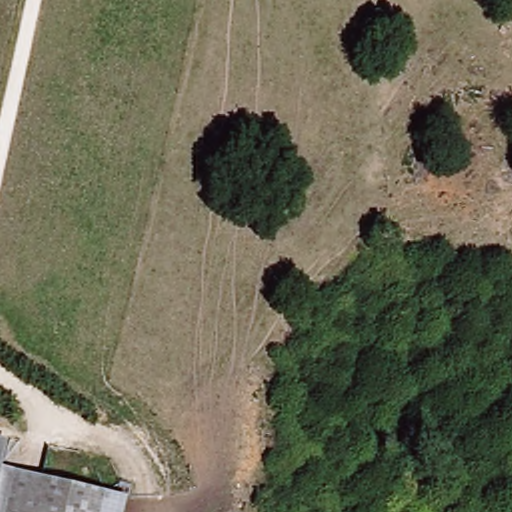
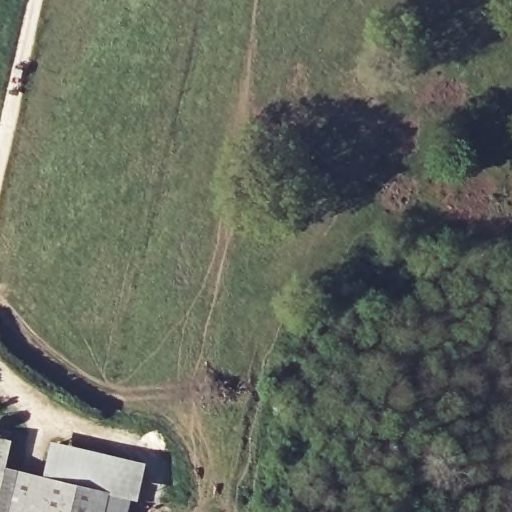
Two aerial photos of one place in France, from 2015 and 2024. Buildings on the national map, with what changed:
unchanged [(5,468),(42,476),(129,498),(126,512),(0,512),(0,437),(12,441),(5,468)]
new [(129,498),(42,476),(51,440),(146,463),(137,500),(129,498)]

